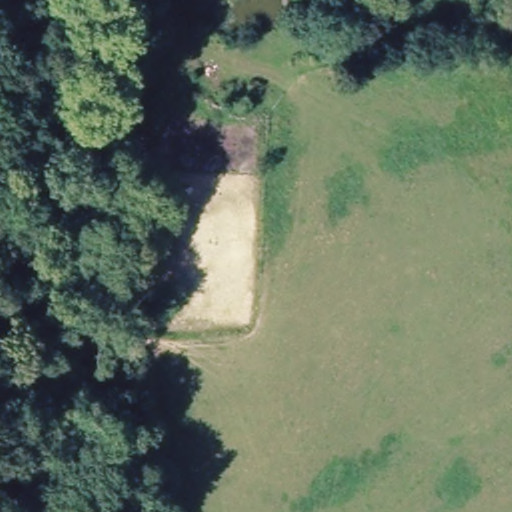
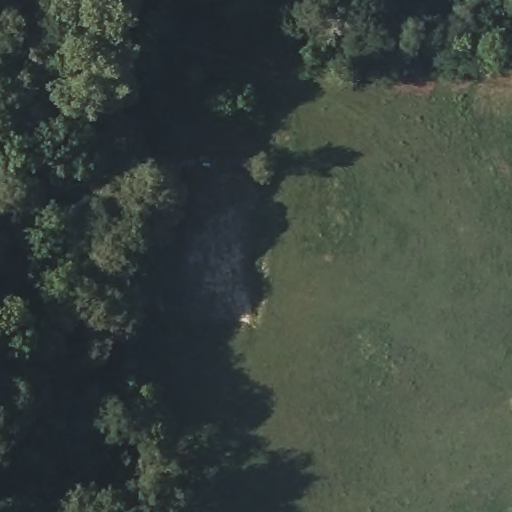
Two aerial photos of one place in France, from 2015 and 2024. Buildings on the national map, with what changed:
unchanged [(94,27),(27,68),(15,50),(76,8),(94,27)]
unchanged [(97,134),(109,84),(134,90),(124,140),(97,134)]

